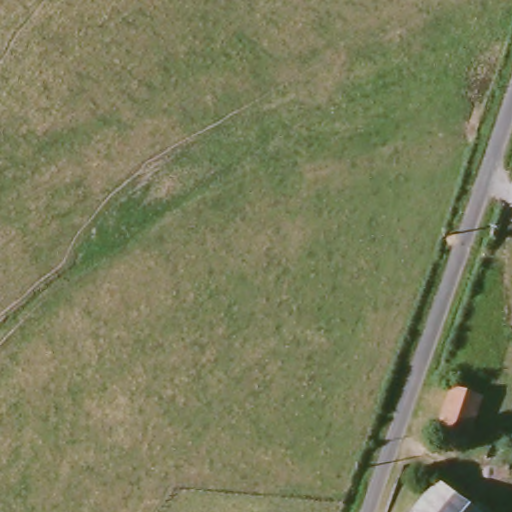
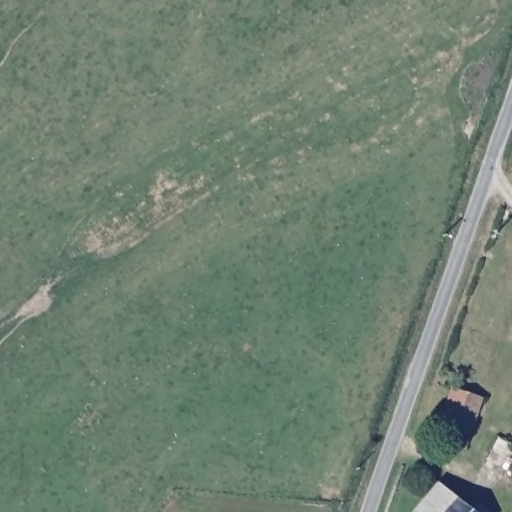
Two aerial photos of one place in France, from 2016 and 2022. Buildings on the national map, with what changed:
unchanged [(442,369),(445,361),(454,364),(452,372),(442,369)]
unchanged [(484,405),(467,456),(438,446),(453,393),(484,405)]
unchanged [(471,512),(419,512),(440,487),(471,512)]
unchanged [(491,512),(472,512),(481,503),(491,512)]

